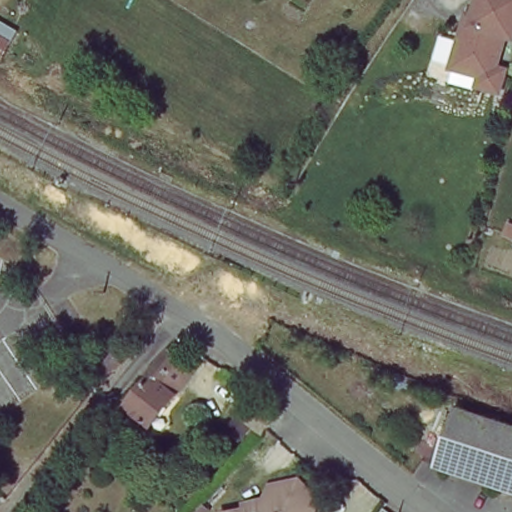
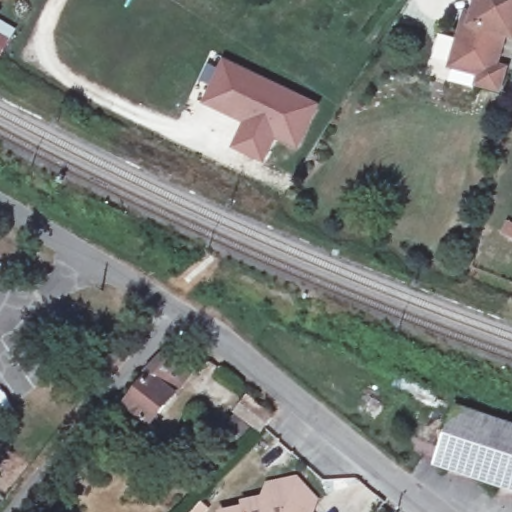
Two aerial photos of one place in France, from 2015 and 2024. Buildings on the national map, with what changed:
unchanged [(475,82),(477,73),(447,65),(458,21),(461,12),(468,14),(472,0),(512,0),(512,23),(509,35),(500,32),(492,64),(501,66),(495,87),(475,82)]
new [(207,100),(226,61),(272,84),(270,87),(311,107),(293,144),(271,133),(258,159),(232,146),(246,120),(234,114),(207,100)]
unchanged [(103,380),(91,371),(102,357),(113,367),(103,380)]
unchanged [(165,357),(178,367),(163,390),(177,400),(153,432),(131,416),(147,393),(141,388),(165,357)]
unchanged [(277,425),(265,438),(235,413),(245,402),(277,425)]
unchanged [(462,410),(512,427),(512,489),(443,465),(462,410)]
unchanged [(240,511),(257,505),(252,489),(283,476),(305,490),(309,512),(240,512),(240,511)]
unchanged [(3,496),(1,501),(0,503),(0,493),(3,496)]

